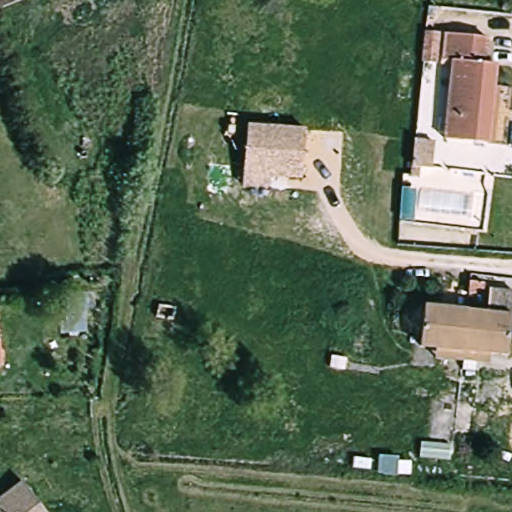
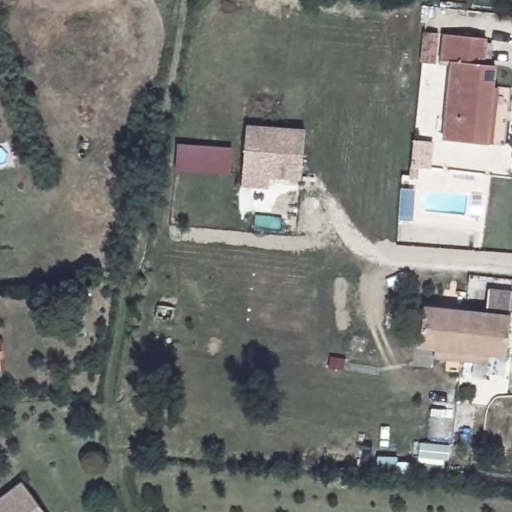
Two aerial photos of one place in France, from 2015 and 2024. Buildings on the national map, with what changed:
unchanged [(19,0),(0,8),(0,0),(19,0)]
unchanged [(490,141),(481,140),(445,135),(455,60),(441,58),(440,70),(425,68),(429,36),(444,39),(445,29),(486,34),(482,58),(491,59),(488,83),(497,84),(490,141)]
unchanged [(304,181),(271,180),(269,189),(243,188),(248,125),(306,129),(304,181)]
unchanged [(434,141),(431,167),(418,166),(417,176),(411,175),(413,159),(416,139),(434,141)]
new [(234,147),(232,176),(175,171),(178,143),(234,147)]
unchanged [(461,359),(466,307),(486,309),(488,286),(512,288),(512,298),(506,352),(492,351),(491,363),(477,361),(461,359)]
unchanged [(436,345),(421,343),(425,303),(466,307),(461,359),(446,358),(434,356),(436,345)]
unchanged [(156,304),(175,308),(173,322),(153,318),(156,304)]
unchanged [(1,315),(0,368),(0,315),(1,315)]
unchanged [(31,487),(50,512),(0,512),(0,509),(31,487)]

